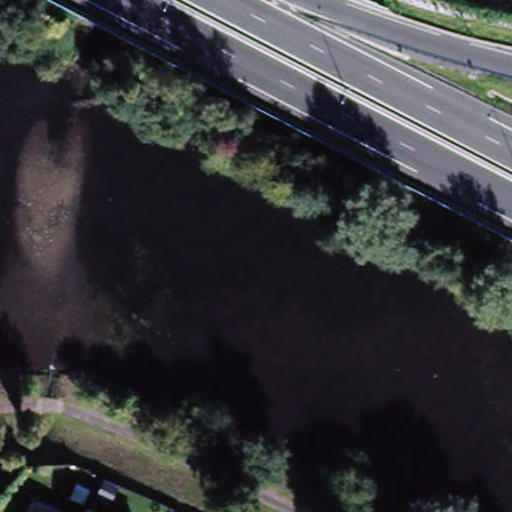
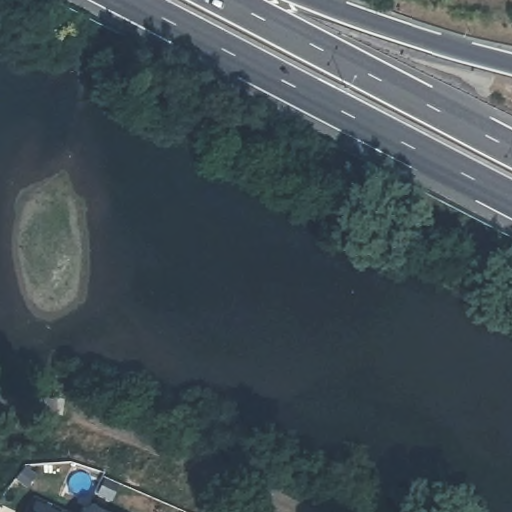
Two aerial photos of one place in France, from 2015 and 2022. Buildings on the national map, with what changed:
unchanged [(39,512),(28,512),(31,507),(39,512)]

